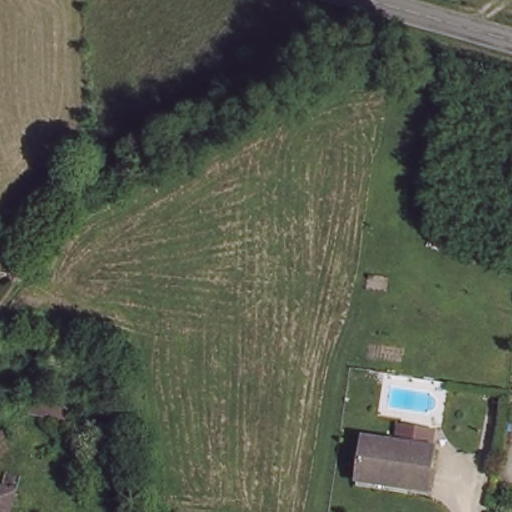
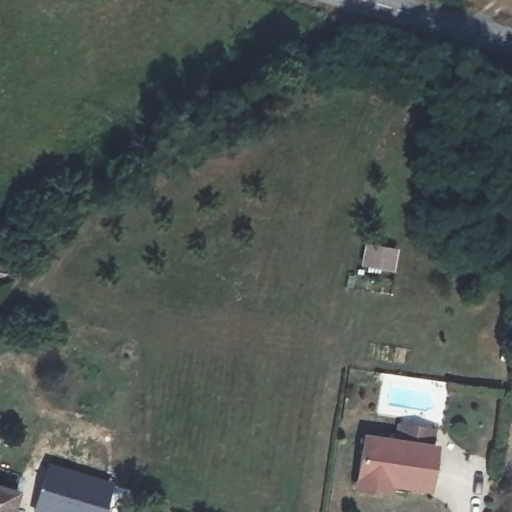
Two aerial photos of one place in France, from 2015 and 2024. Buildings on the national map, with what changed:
unchanged [(360,490),(362,478),(367,440),(437,451),(430,492),(411,489),(410,496),(360,490)]
new [(103,512),(31,512),(47,460),(112,481),(103,512)]
unchanged [(15,490),(9,512),(0,512),(0,487),(15,490)]

